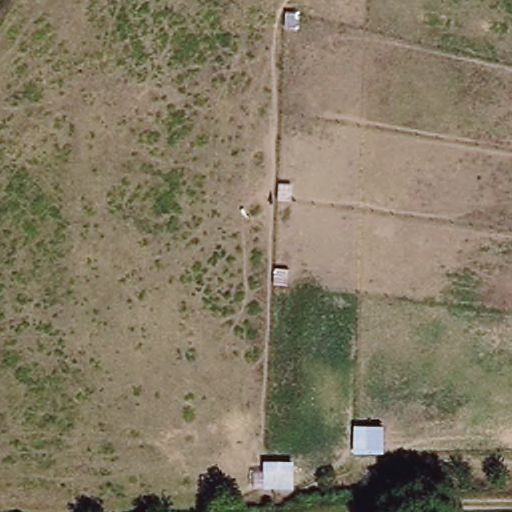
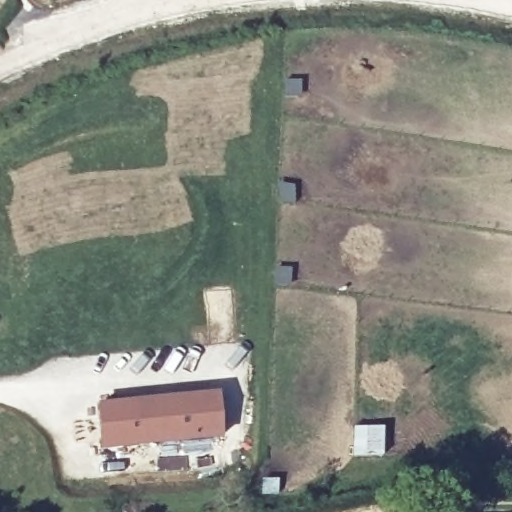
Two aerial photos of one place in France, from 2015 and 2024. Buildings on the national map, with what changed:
new [(223,437),(102,449),(97,405),(218,391),(223,437)]

